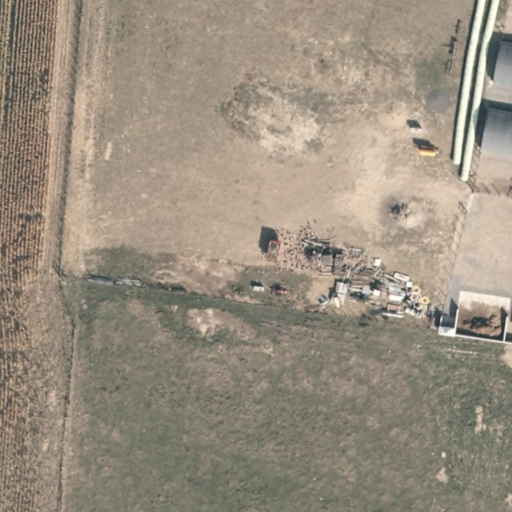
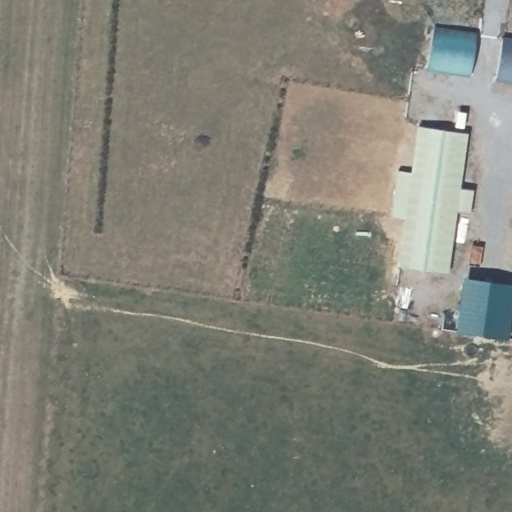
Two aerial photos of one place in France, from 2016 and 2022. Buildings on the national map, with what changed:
new [(426,70),(433,25),(475,31),(468,76),(426,70)]
unchanged [(503,37),(512,39),(512,83),(495,80),(503,37)]
new [(397,264),(403,217),(391,216),(397,169),(410,171),(417,125),(467,132),(459,187),(473,189),(470,209),(456,208),(447,272),(397,264)]
new [(512,283),(512,300),(506,338),(454,330),(462,275),(512,283)]

